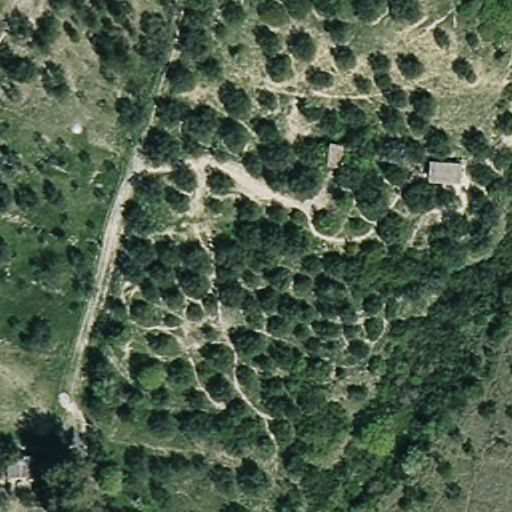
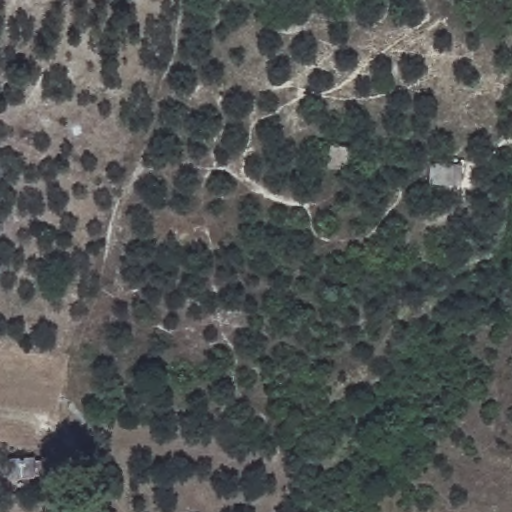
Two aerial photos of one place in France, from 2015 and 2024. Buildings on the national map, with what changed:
unchanged [(333,145),(350,148),(347,166),(331,164),(333,145)]
unchanged [(30,481),(6,479),(7,459),(32,462),(30,481)]

